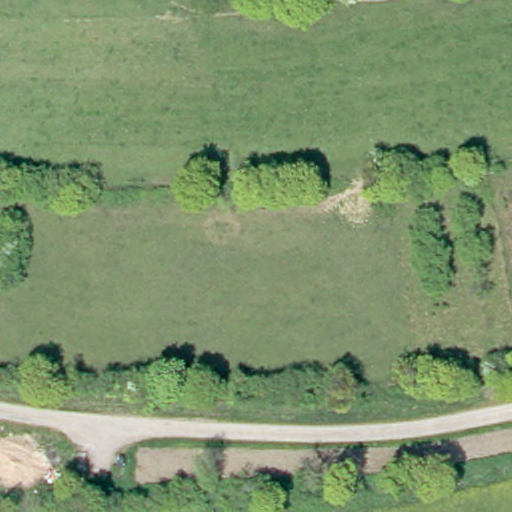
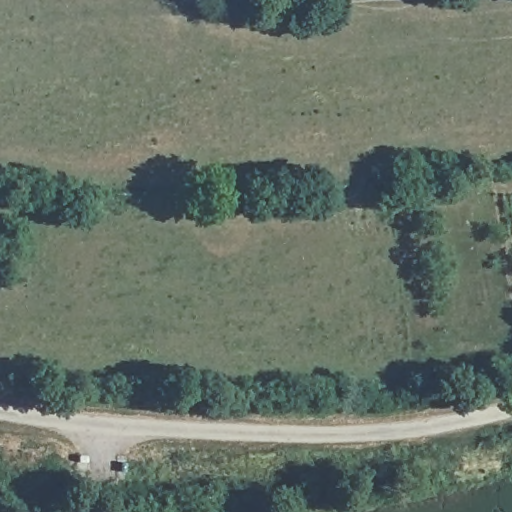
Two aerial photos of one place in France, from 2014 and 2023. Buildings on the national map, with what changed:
[]

